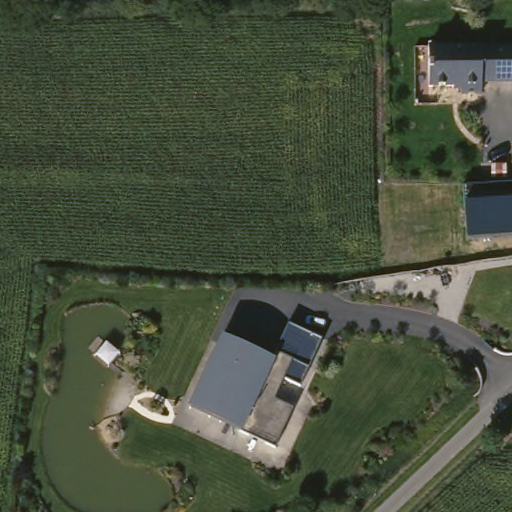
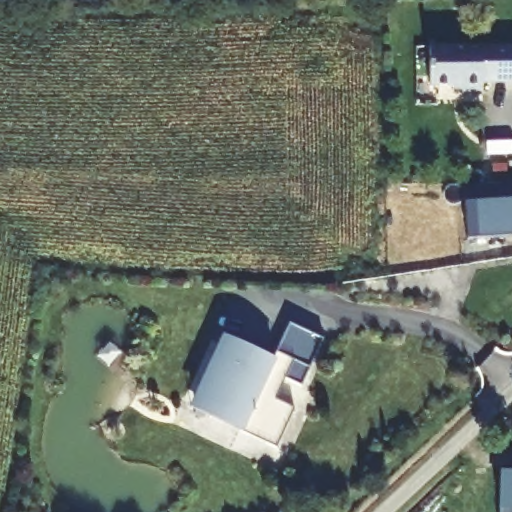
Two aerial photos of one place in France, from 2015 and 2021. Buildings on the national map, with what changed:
unchanged [(512,82),(483,82),(483,95),(463,95),(463,87),(430,87),(430,49),(512,48),(512,82)]
unchanged [(465,201),(465,187),(512,183),(512,235),(467,239),(465,201)]
unchanged [(219,335),(271,357),(284,327),(320,341),(298,386),(266,375),(241,431),(187,403),(219,335)]
new [(502,474),(512,474),(512,512),(501,512),(502,474)]

